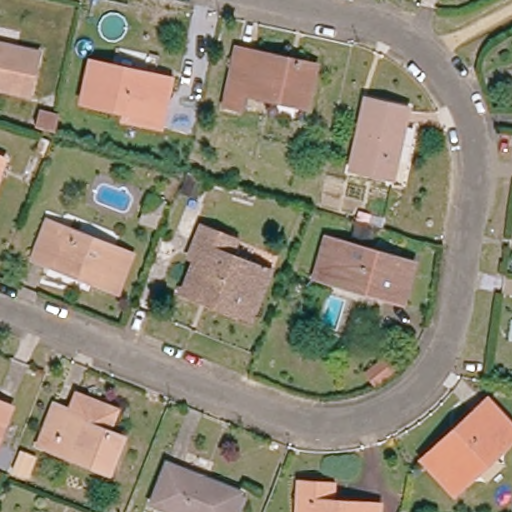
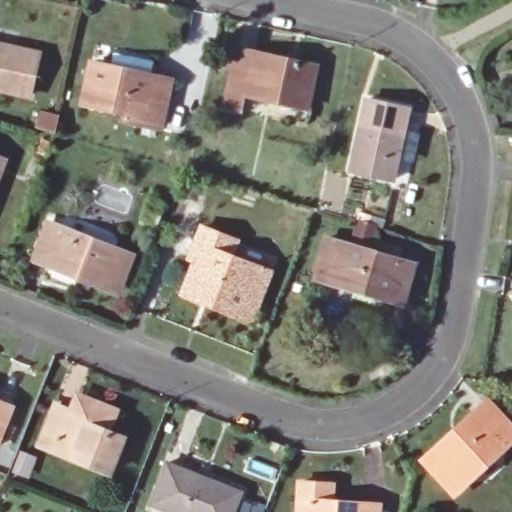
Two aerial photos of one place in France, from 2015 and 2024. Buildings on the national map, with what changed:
unchanged [(5,45),(39,54),(30,95),(0,89),(0,45),(5,45)]
unchanged [(316,65),(307,108),(244,94),(240,109),(225,106),(237,49),(316,65)]
unchanged [(161,128),(123,119),(125,113),(81,103),(90,62),(172,80),(161,128)]
unchanged [(365,99),(409,109),(394,179),(350,170),(365,99)]
unchanged [(60,114),(56,134),(41,129),(45,111),(60,114)]
unchanged [(51,142),(46,155),(37,151),(42,138),(51,142)]
unchanged [(4,159),(0,171),(0,158),(4,159)]
unchanged [(178,193),(186,172),(205,179),(196,199),(178,193)]
unchanged [(139,222),(146,199),(159,204),(150,226),(139,222)]
unchanged [(371,246),(347,239),(353,220),(377,227),(371,246)]
unchanged [(116,294),(100,287),(30,259),(44,222),(115,249),(131,256),(116,294)]
unchanged [(197,299),(181,293),(194,260),(189,258),(201,226),(239,241),(232,255),(271,271),(260,299),(252,320),(197,299)]
unchanged [(315,278),(326,238),(415,264),(403,304),(383,298),(328,282),(315,278)]
unchanged [(400,367),(376,386),(365,372),(388,353),(400,367)]
unchanged [(110,437),(125,443),(110,478),(39,449),(55,409),(70,415),(76,399),(90,404),(117,416),(110,437)]
unchanged [(512,434),(450,493),(419,459),(446,434),(456,426),(483,401),(512,433),(512,434)]
unchanged [(0,436),(0,402),(11,407),(0,436)]
unchanged [(11,477),(20,455),(33,460),(38,462),(30,484),(25,482),(11,477)]
unchanged [(236,512),(166,512),(146,504),(162,463),(237,492),(236,494),(242,497),(236,512)]
unchanged [(299,501),(301,483),(333,485),(332,501),(380,504),(379,512),(298,512),(299,501)]

